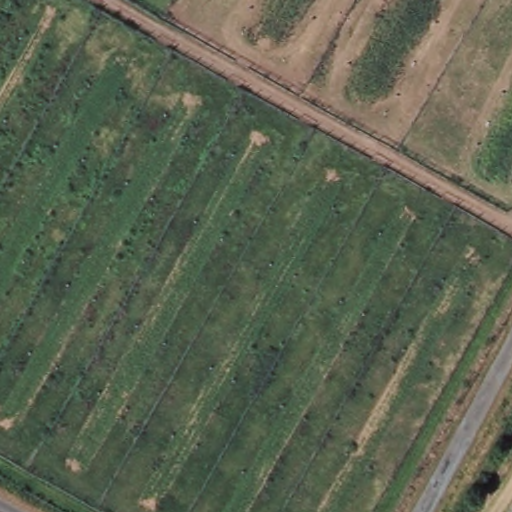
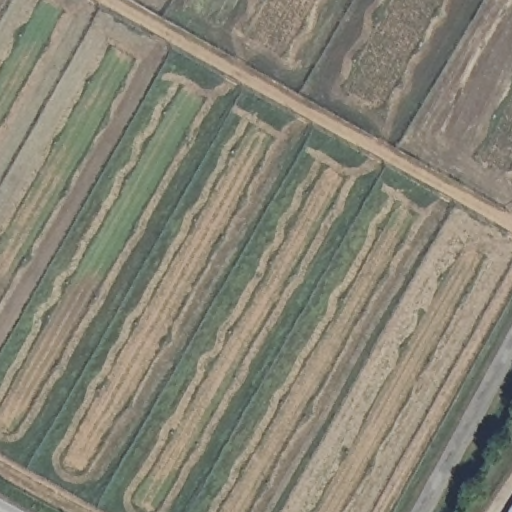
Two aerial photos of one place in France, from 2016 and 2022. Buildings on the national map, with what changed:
unchanged [(512,512),(509,512),(512,508),(512,512)]

